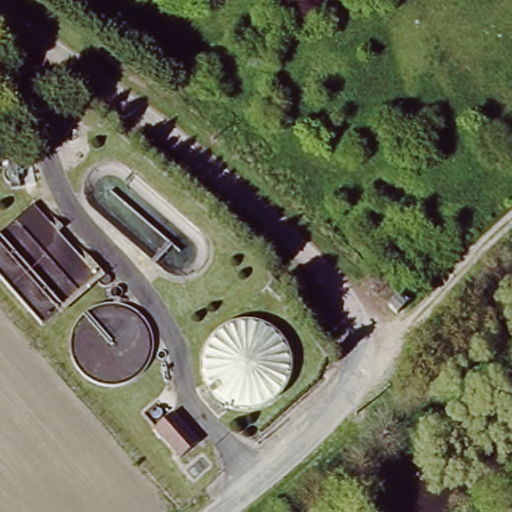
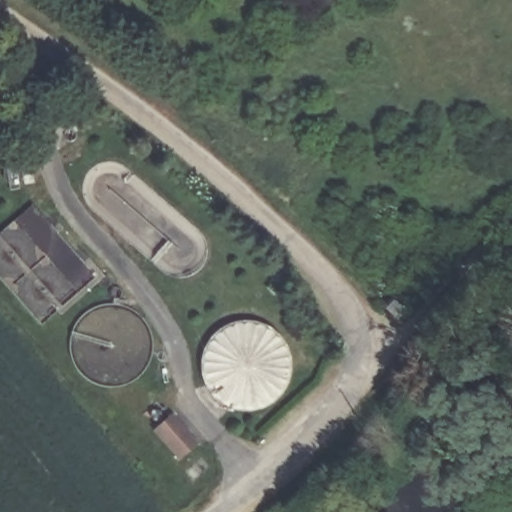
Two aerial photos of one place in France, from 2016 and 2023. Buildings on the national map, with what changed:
unchanged [(202,445),(178,462),(153,432),(173,414),(202,445)]

